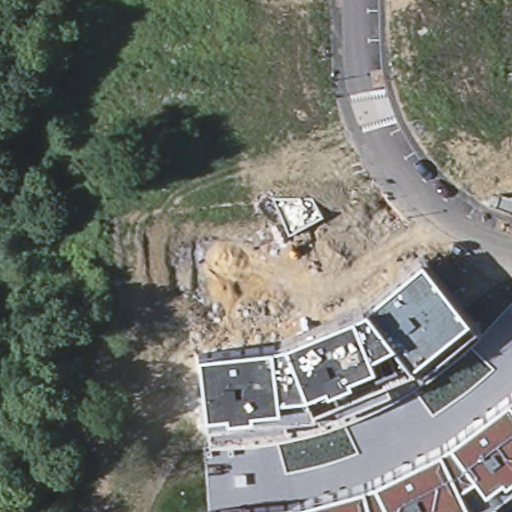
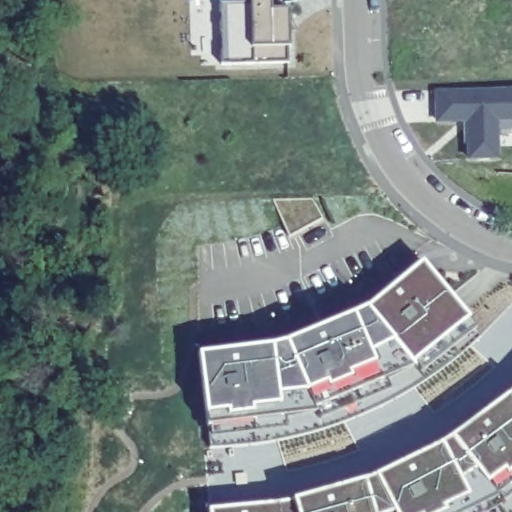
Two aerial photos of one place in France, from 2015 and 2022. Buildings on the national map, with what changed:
new [(235,3),(235,0),(273,0),(273,11),(291,10),(292,49),(290,49),(290,65),(222,67),(220,4),(235,3)]
new [(500,160),(465,161),(464,122),(435,122),(435,90),(512,88),(512,121),(498,121),(500,160)]
unchanged [(314,200),(325,220),(291,238),(275,201),(314,200)]
unchanged [(200,356),(272,347),(286,344),(366,309),(422,262),(469,321),(476,330),(420,376),(413,370),(387,381),(390,391),(317,420),(315,415),(284,418),(285,432),(210,441),(208,426),(207,414),(200,356)]
unchanged [(293,503),(363,482),(375,479),(438,448),(452,440),(507,398),(512,394),(512,488),(493,502),(475,512),(210,512),(210,511),(293,503)]

